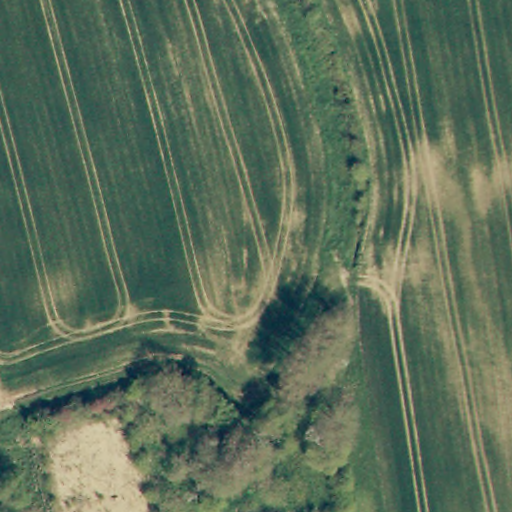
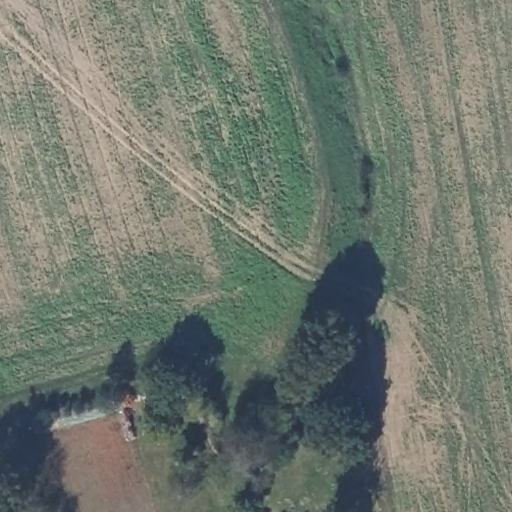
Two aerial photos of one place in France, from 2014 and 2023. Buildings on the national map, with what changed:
[]

